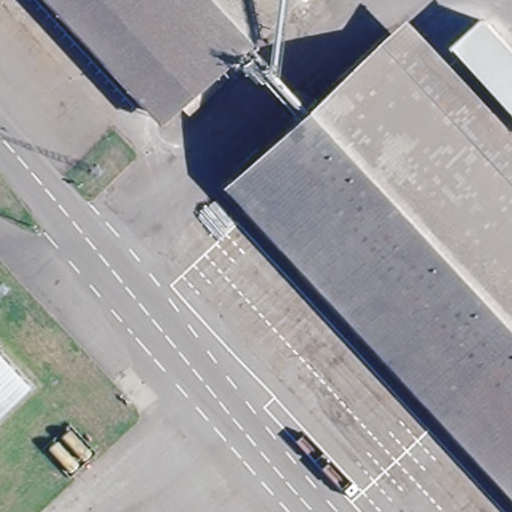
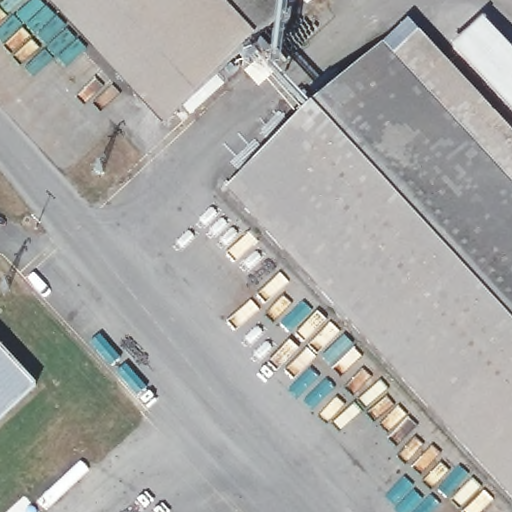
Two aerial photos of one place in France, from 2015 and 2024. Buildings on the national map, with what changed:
unchanged [(250,42),(217,74),(226,85),(200,108),(192,100),(167,120),(54,0),(296,0),(250,42)]
unchanged [(512,118),(449,50),(482,17),(512,50),(512,118)]
unchanged [(396,23),(512,150),(512,475),(235,170),(396,23)]
unchanged [(31,378),(0,408),(0,345),(31,378)]

